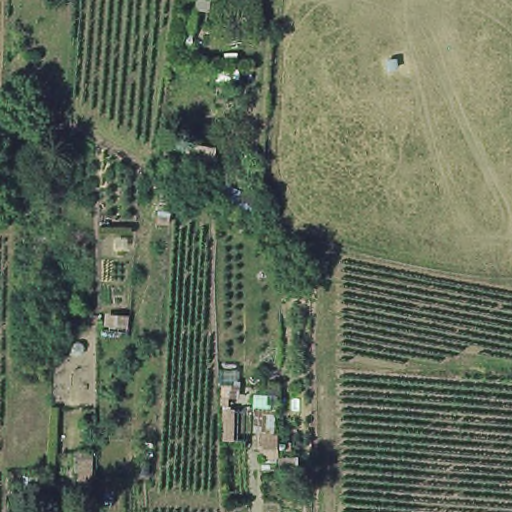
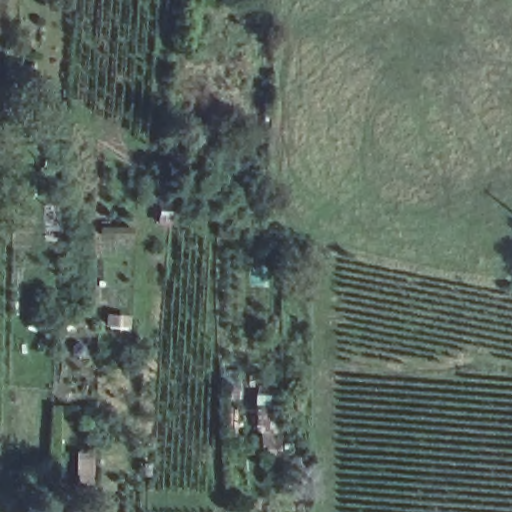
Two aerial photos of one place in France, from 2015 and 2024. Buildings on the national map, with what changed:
unchanged [(198,13),(193,46),(181,45),(186,11),(198,13)]
unchanged [(218,149),(214,173),(185,169),(189,146),(218,149)]
unchanged [(132,317),(132,330),(107,328),(108,315),(132,317)]
unchanged [(277,395),(280,462),(265,463),(265,455),(261,454),(260,437),(258,437),(260,411),(254,410),(255,395),(277,395)]
unchanged [(95,452),(93,493),(76,493),(78,453),(95,452)]

